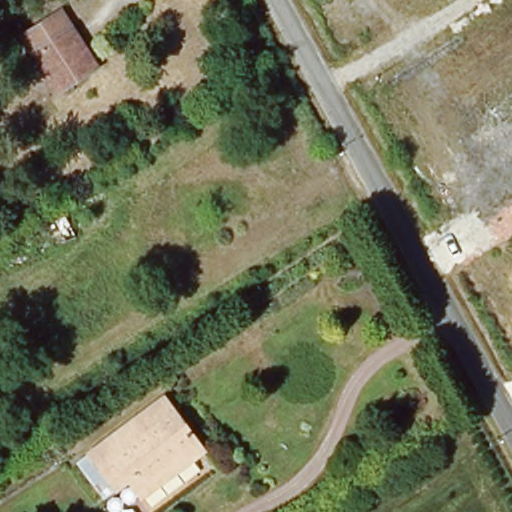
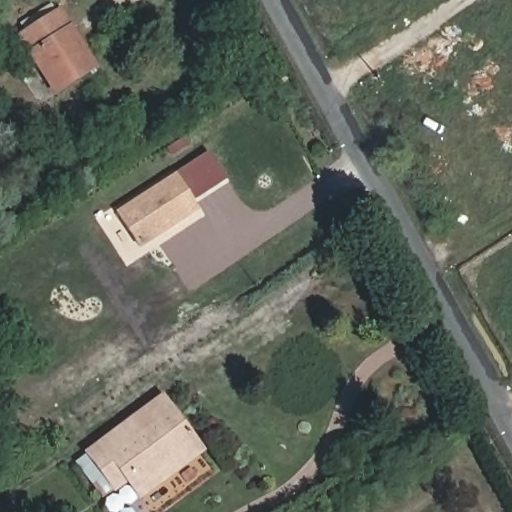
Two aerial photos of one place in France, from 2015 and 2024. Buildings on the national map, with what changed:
unchanged [(98,59),(109,76),(66,102),(43,64),(33,47),(74,21),(85,38),(94,52),(98,59)]
new [(179,176),(210,156),(228,184),(197,202),(202,210),(144,247),(121,213),(179,176)]
unchanged [(198,455),(132,497),(123,482),(110,491),(84,452),(163,401),(198,455)]

